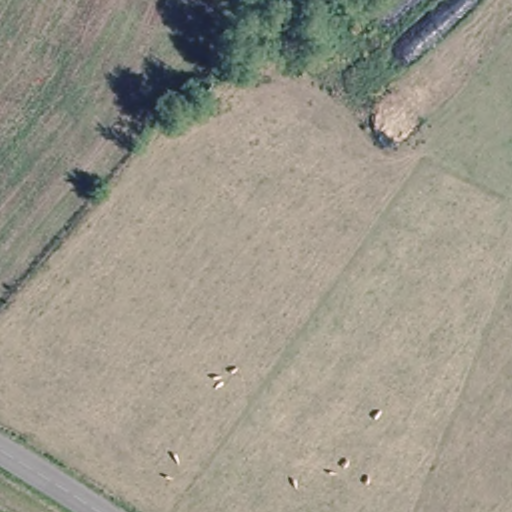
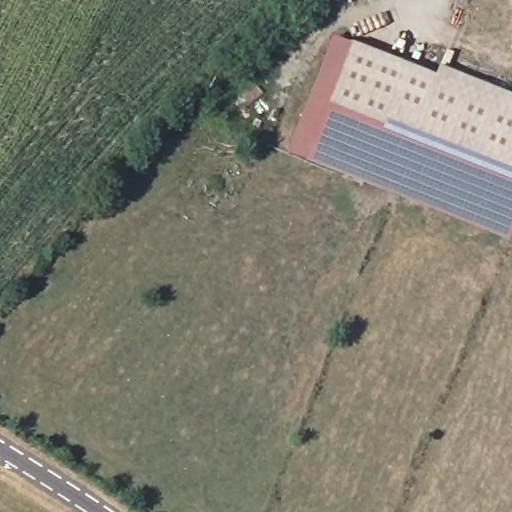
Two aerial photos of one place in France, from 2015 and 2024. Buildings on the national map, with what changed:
new [(434,77),(439,65),(512,95),(512,234),(508,245),(287,156),(332,37),(350,43),(434,77)]

